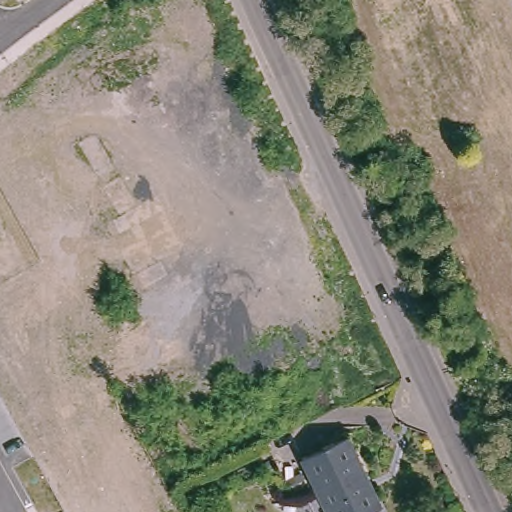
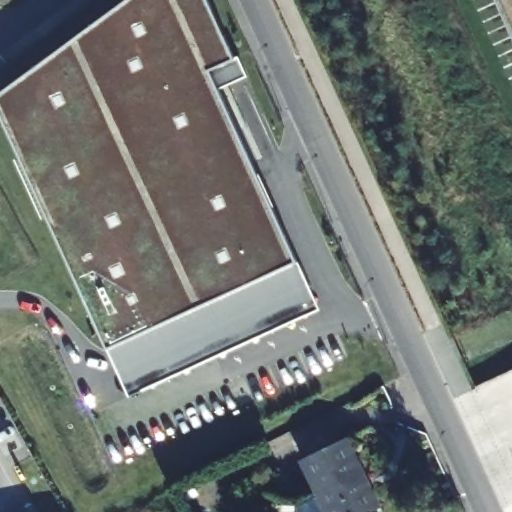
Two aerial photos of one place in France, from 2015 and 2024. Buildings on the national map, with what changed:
new [(236,59),(236,58),(239,56),(248,76),(221,90),(321,313),(128,401),(5,111),(144,0),(181,0),(211,70),(236,59)]
new [(512,0),(512,51),(491,0),(512,0)]
unchanged [(375,510),(370,512),(326,512),(301,461),(346,440),(366,481),(380,508),(375,510)]

